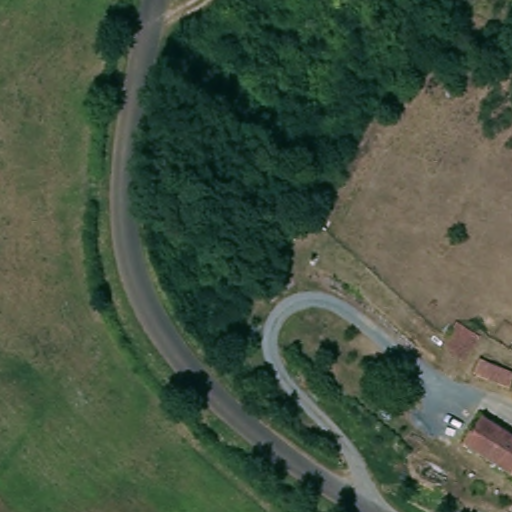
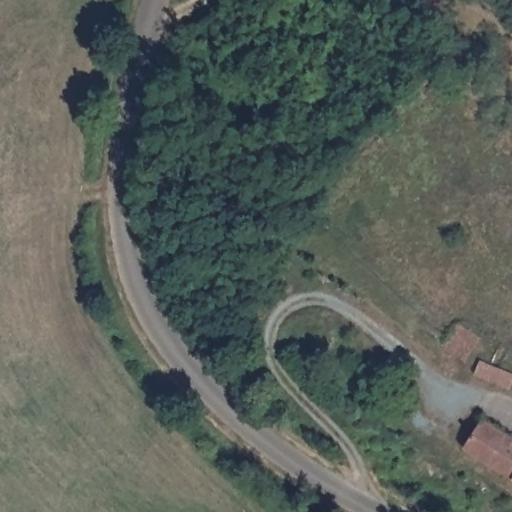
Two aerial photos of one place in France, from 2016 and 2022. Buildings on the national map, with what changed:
unchanged [(512,373),(512,393),(485,383),(492,367),(512,373)]
unchanged [(485,404),(495,409),(512,419),(512,481),(458,451),(485,404)]

